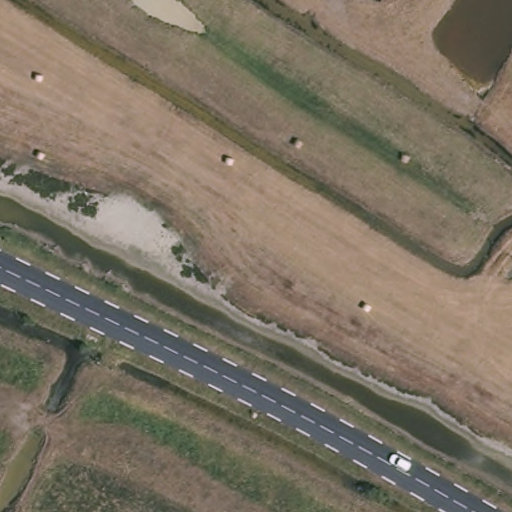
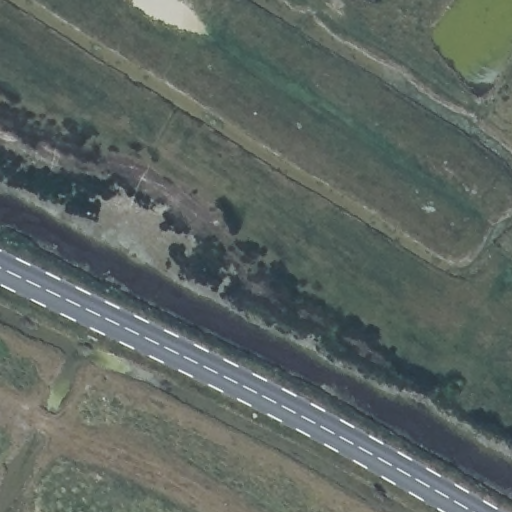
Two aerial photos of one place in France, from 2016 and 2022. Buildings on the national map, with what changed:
[]

